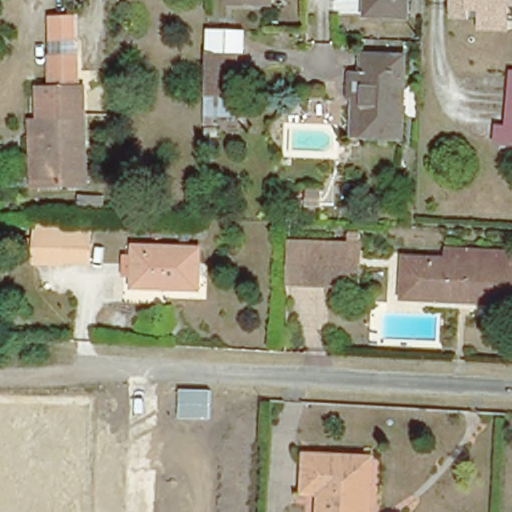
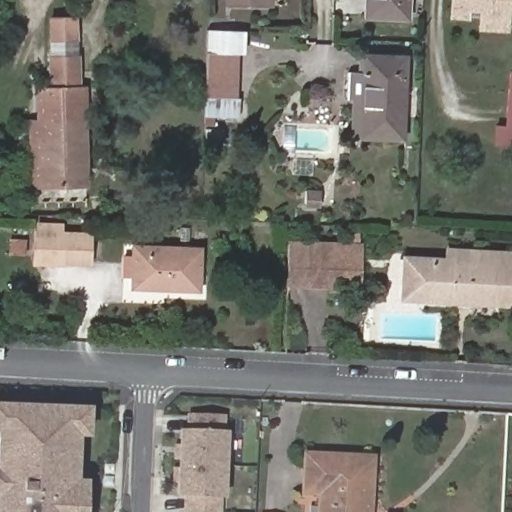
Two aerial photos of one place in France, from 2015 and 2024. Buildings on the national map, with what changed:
unchanged [(233,8),(233,0),(278,0),(278,9),(233,8)]
unchanged [(368,0),(408,0),(407,17),(368,16),(368,0)]
unchanged [(449,0),(512,0),(512,7),(504,6),(503,23),(477,21),(477,19),(466,19),(448,18),(449,0)]
new [(49,15),(80,15),(80,55),(49,54),(49,15)]
unchanged [(209,49),(247,49),(247,119),(210,120),(209,49)]
unchanged [(33,98),(33,84),(48,85),(49,54),(80,55),(80,85),(85,85),(86,96),(33,98)]
unchanged [(354,74),(365,74),(366,55),(406,57),(402,138),(363,136),(352,135),(354,74)]
unchanged [(497,128),(507,129),(510,76),(512,76),(512,147),(496,146),(497,128)]
unchanged [(88,195),(31,196),(29,136),(33,136),(33,98),(86,96),(88,195)]
unchanged [(317,224),(307,224),(307,205),(317,205),(317,224)]
unchanged [(92,263),(35,263),(36,232),(38,232),(38,222),(64,223),(64,233),(92,233),(92,263)]
unchanged [(288,278),(289,242),(310,243),(337,244),(346,244),(361,245),(360,289),(343,289),(335,289),(330,288),(287,285),(288,278)]
unchanged [(136,248),(201,249),(200,275),(199,289),(134,286),(135,274),(136,248)]
unchanged [(453,254),(512,258),(511,269),(512,269),(512,306),(496,305),(410,302),(412,264),(453,266),(453,254)]
new [(92,409),(90,439),(80,439),(78,482),(88,482),(87,512),(0,512),(0,405),(92,409)]
new [(180,431),(186,431),(187,414),(226,414),(225,432),(229,432),(225,512),(177,512),(180,431)]
unchanged [(333,503),(314,503),(317,464),(383,468),(380,512),(332,512),(333,503)]

